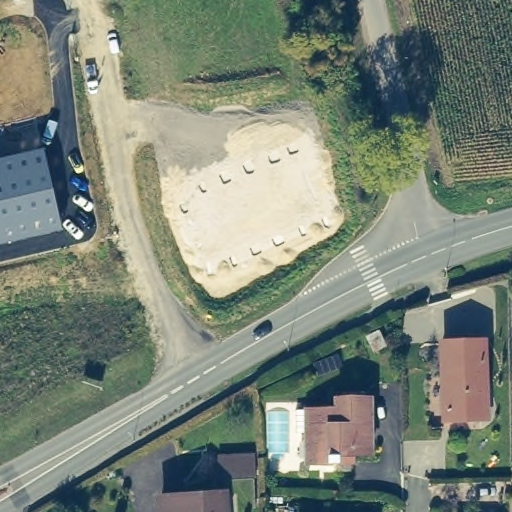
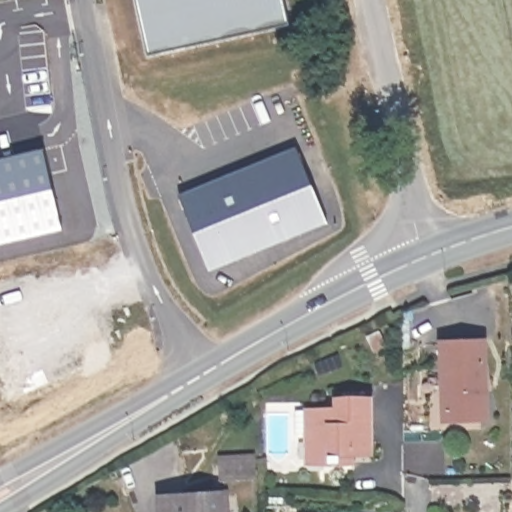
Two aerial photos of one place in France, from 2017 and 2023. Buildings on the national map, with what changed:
new [(140,58),(128,0),(277,0),(282,27),(140,58)]
unchanged [(62,230),(0,244),(0,158),(42,149),(62,230)]
new [(320,226),(202,273),(177,210),(172,197),(184,192),(290,150),(320,226)]
unchanged [(483,340),(484,416),(445,417),(442,341),(483,340)]
unchanged [(332,393),(368,394),(367,448),(349,449),(349,458),(302,457),(302,423),(302,405),(307,405),(332,406),(332,393)]
unchanged [(217,488),(220,512),(159,512),(157,492),(217,488)]

